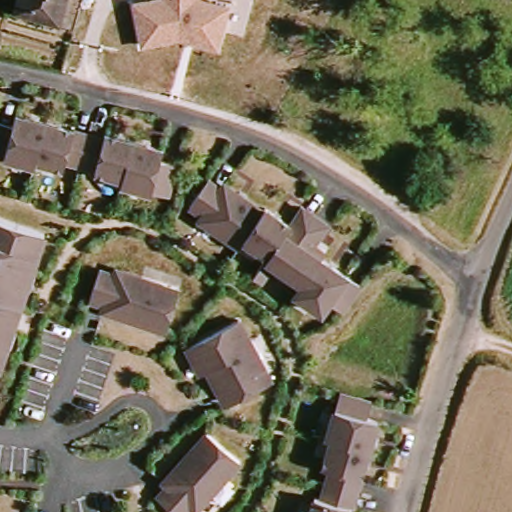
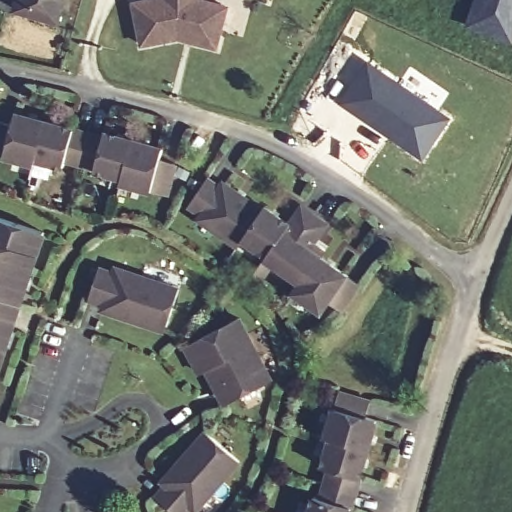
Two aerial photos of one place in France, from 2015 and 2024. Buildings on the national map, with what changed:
unchanged [(20,0),(57,0),(52,21),(17,12),(20,0)]
unchanged [(141,48),(130,1),(135,0),(221,0),(232,3),(221,51),(180,39),(141,48)]
new [(448,117),(423,157),(342,103),(368,64),(448,117)]
unchanged [(16,121),(20,111),(50,119),(39,157),(37,162),(0,151),(0,125),(2,117),(16,121)]
unchanged [(39,157),(50,119),(78,127),(92,131),(83,161),(70,157),(68,164),(39,157)]
unchanged [(104,174),(103,171),(88,166),(97,136),(113,140),(114,136),(141,144),(131,181),(104,174)]
unchanged [(183,167),(175,197),(130,185),(131,181),(141,144),(170,151),(167,163),(183,167)]
unchanged [(207,178),(220,187),(224,183),(262,210),(242,240),(238,246),(198,219),(202,214),(188,205),(207,178)]
unchanged [(264,207),(288,223),(307,198),(321,207),(296,241),(283,231),(265,256),(242,240),(262,210),(264,207)]
unchanged [(251,273),(258,265),(265,256),(283,231),(296,241),(321,207),(334,217),(313,245),(309,251),(319,258),(302,282),(272,263),(267,271),(260,280),(251,273)]
unchanged [(6,370),(0,368),(0,216),(50,232),(6,370)]
unchanged [(357,285),(338,311),(326,302),(319,312),(293,294),(302,282),(319,258),(345,276),(357,285)]
unchanged [(106,305),(91,300),(101,270),(116,275),(118,268),(182,290),(168,331),(105,310),(106,305)]
unchanged [(270,382),(237,402),(220,375),(227,371),(223,366),(205,377),(188,351),(238,318),(264,359),(261,370),(270,382)]
unchanged [(377,447),(340,436),(335,435),(349,390),(380,398),(375,416),(385,418),(377,447)]
unchanged [(166,477),(215,431),(245,463),(197,508),(193,504),(185,512),(178,512),(158,492),(170,481),(166,477)]
unchanged [(338,466),(331,464),(340,436),(377,447),(368,475),(364,489),(335,480),(338,466)]
unchanged [(327,488),(357,497),(353,512),(312,512),(315,502),(322,504),(327,488)]

